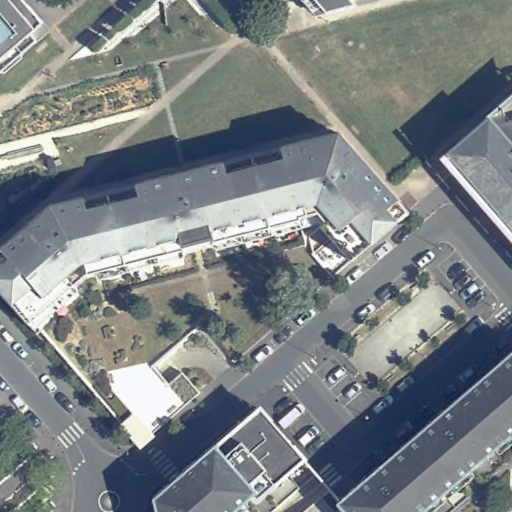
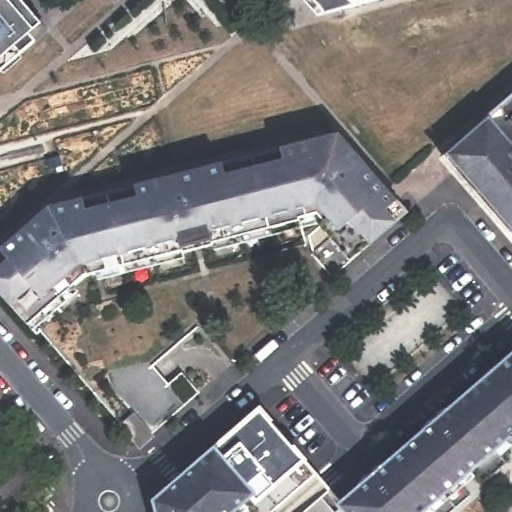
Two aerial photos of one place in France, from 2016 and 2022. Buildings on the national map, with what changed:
unchanged [(0,74),(0,0),(24,0),(50,30),(0,74)]
unchanged [(343,8),(302,19),(286,0),(372,0),(343,8)]
unchanged [(438,159),(512,95),(512,244),(438,159)]
unchanged [(339,134),(407,213),(354,259),(325,225),(329,221),(322,212),(304,217),(305,219),(218,242),(219,243),(186,252),(186,250),(85,276),(28,325),(0,292),(0,251),(49,208),(339,134)]
unchanged [(424,512),(338,512),(332,506),(512,351),(512,436),(424,512)]
unchanged [(251,497),(236,512),(152,512),(149,502),(214,446),(257,405),(300,460),(251,497)]
unchanged [(132,418),(149,437),(139,445),(123,426),(132,418)]

